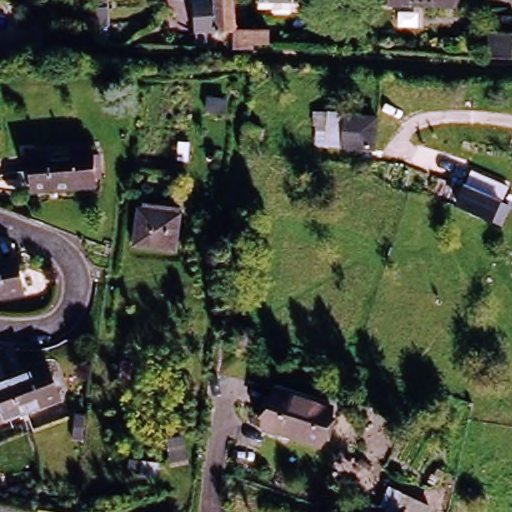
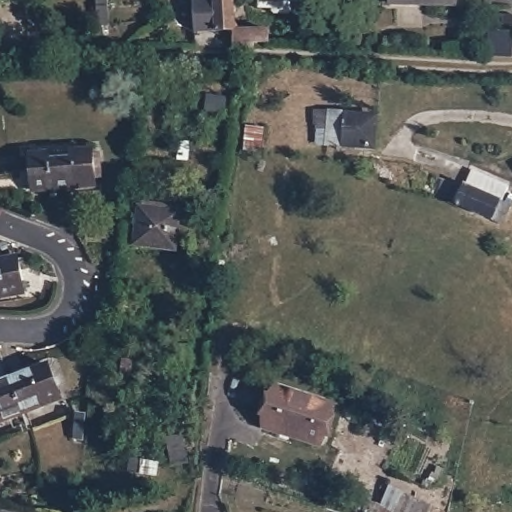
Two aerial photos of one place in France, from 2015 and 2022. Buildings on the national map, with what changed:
unchanged [(105,25),(93,26),(94,0),(106,0),(105,25)]
unchanged [(238,45),(238,34),(220,35),(220,47),(198,47),(198,35),(180,31),(180,13),(197,18),(197,0),(238,0),(238,30),(270,31),(269,46),(238,45)]
unchanged [(323,2),(286,0),(323,0),(323,2)]
unchanged [(457,4),(388,1),(389,0),(457,0),(457,4)]
unchanged [(500,6),(512,6),(511,25),(512,50),(486,50),(487,24),(500,24),(500,6)]
unchanged [(375,150),(341,145),(324,143),(328,112),(345,114),(378,119),(375,150)]
unchanged [(80,151),(80,187),(37,187),(36,151),(80,151)]
unchanged [(505,199),(500,218),(435,199),(440,181),(505,199)]
unchanged [(177,213),(172,250),(131,244),(137,206),(177,213)]
unchanged [(22,259),(25,287),(0,289),(0,261),(22,259)]
unchanged [(48,364),(64,398),(25,413),(12,380),(48,364)]
unchanged [(25,413),(0,424),(0,384),(12,380),(25,413)]
unchanged [(337,405),(325,447),(265,429),(278,388),(337,405)]

